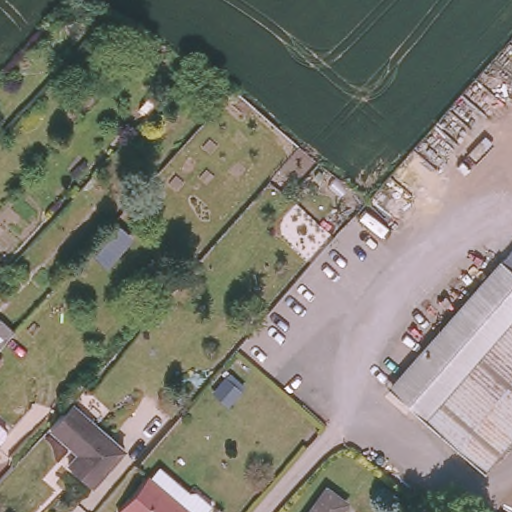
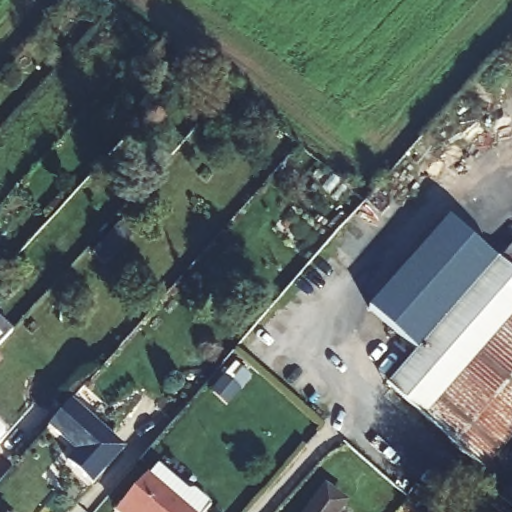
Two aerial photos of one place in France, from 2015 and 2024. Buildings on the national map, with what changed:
new [(369,309),(449,219),(496,259),(416,348),(369,309)]
unchanged [(512,242),(512,273),(496,259),(512,242)]
unchanged [(512,340),(447,432),(413,401),(388,379),(496,259),(512,273),(512,340)]
unchanged [(447,432),(512,340),(512,429),(481,464),(447,432)]
unchanged [(119,442),(88,478),(63,455),(73,444),(45,419),(66,395),(119,442)]
unchanged [(153,474),(187,502),(191,501),(205,512),(120,512),(144,483),(145,484),(153,474)]
unchanged [(339,497),(328,512),(300,512),(321,484),(339,497)]

